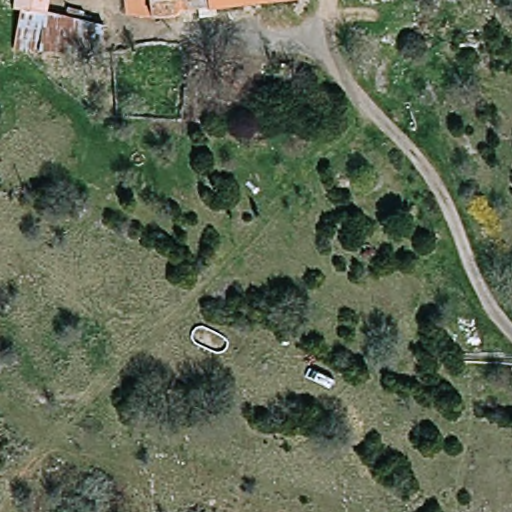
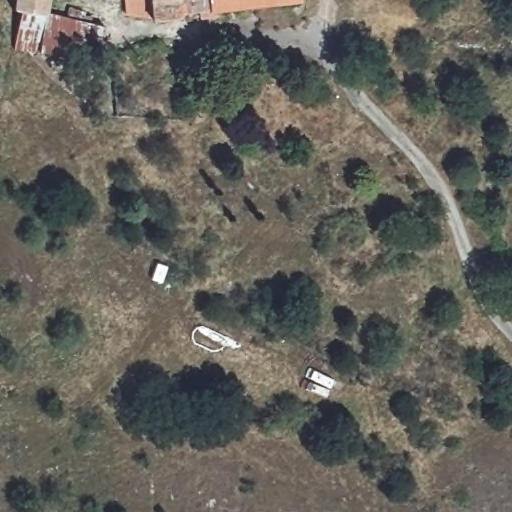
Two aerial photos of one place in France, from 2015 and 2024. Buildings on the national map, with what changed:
unchanged [(80,25),(75,67),(18,59),(23,26),(0,20),(5,0),(54,0),(50,17),(80,25)]
unchanged [(154,0),(220,0),(154,7),(154,0)]

